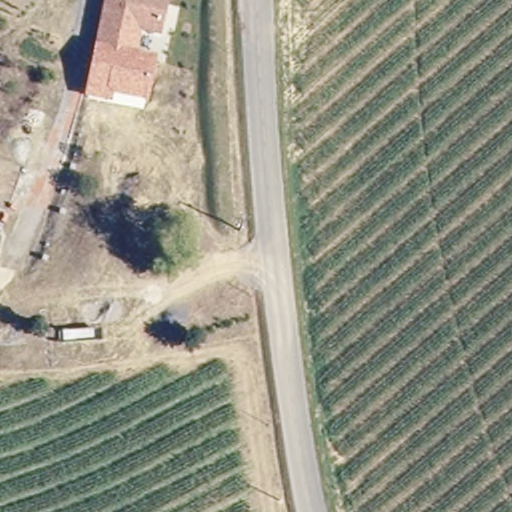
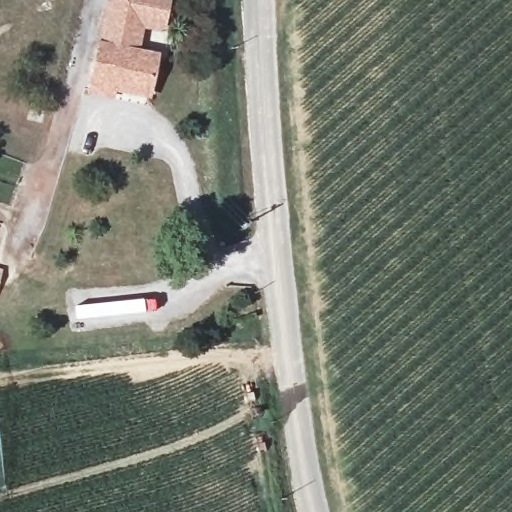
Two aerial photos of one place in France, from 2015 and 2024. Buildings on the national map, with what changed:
unchanged [(142,24),(136,51),(99,42),(108,0),(168,0),(161,28),(142,24)]
unchanged [(96,41),(99,42),(136,51),(160,53),(150,100),(115,92),(113,102),(84,95),(96,41)]

